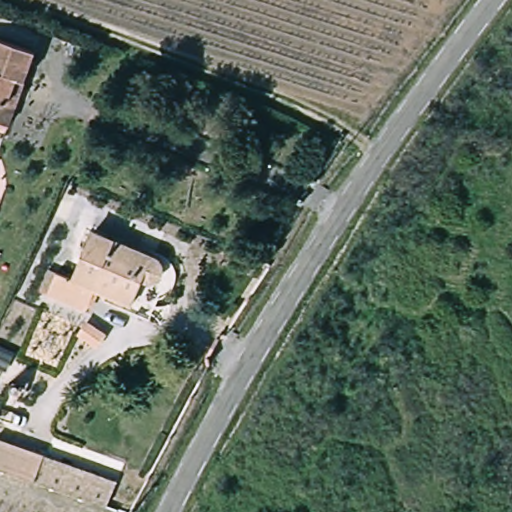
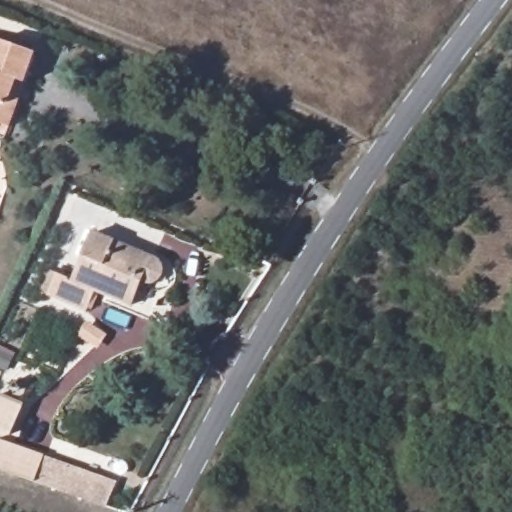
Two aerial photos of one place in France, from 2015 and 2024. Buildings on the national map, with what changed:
unchanged [(0,131),(0,38),(31,49),(20,80),(2,132),(0,131)]
unchanged [(79,311),(40,294),(49,275),(66,283),(87,235),(144,260),(147,261),(149,263),(151,266),(153,270),(153,275),(152,280),(151,283),(147,287),(142,289),(136,289),(132,288),(124,307),(87,292),(79,311)]
unchanged [(65,465),(63,486),(0,472),(0,442),(65,465)]

